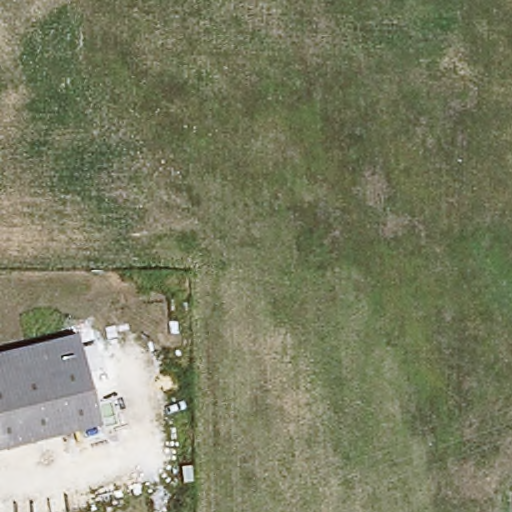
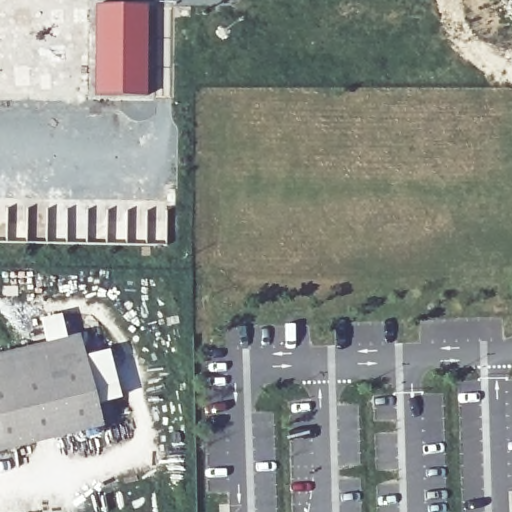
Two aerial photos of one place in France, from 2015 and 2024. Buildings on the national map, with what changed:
new [(93,6),(146,6),(144,99),(92,96),(93,6)]
unchanged [(100,430),(0,450),(0,352),(80,335),(100,430)]
demolished [(125,512),(94,512),(82,471),(113,463),(125,512)]

